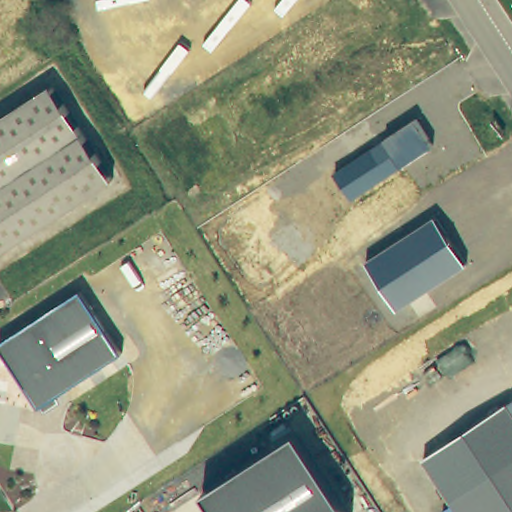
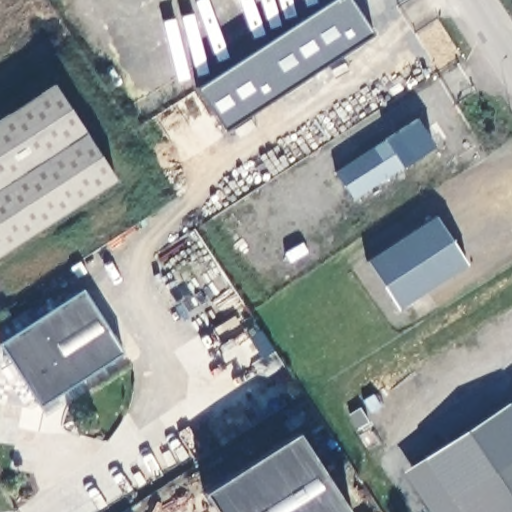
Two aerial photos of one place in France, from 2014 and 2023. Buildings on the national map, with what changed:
new [(331,0),(350,0),(370,32),(226,131),(198,88),(331,0)]
unchanged [(119,177),(0,257),(0,123),(58,85),(119,177)]
unchanged [(402,169),(353,200),(334,174),(382,141),(414,120),(433,148),(402,169)]
unchanged [(398,310),(366,264),(434,217),(466,266),(398,310)]
unchanged [(0,347),(0,344),(80,292),(123,355),(39,406),(0,347)]
unchanged [(459,512),(423,460),(512,401),(512,512),(459,512)]
unchanged [(296,434),(347,512),(217,512),(205,494),(296,434)]
new [(459,512),(431,512),(404,471),(423,460),(459,512)]

